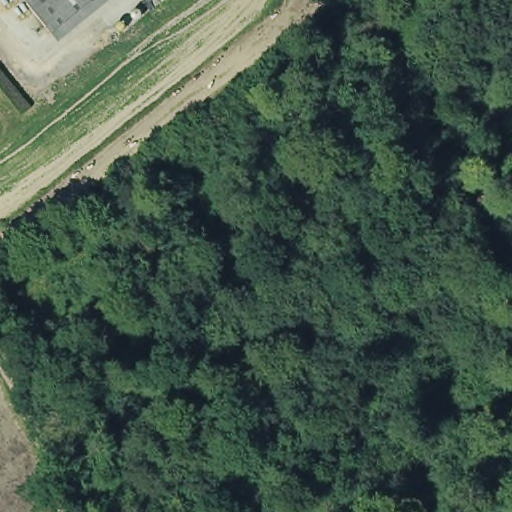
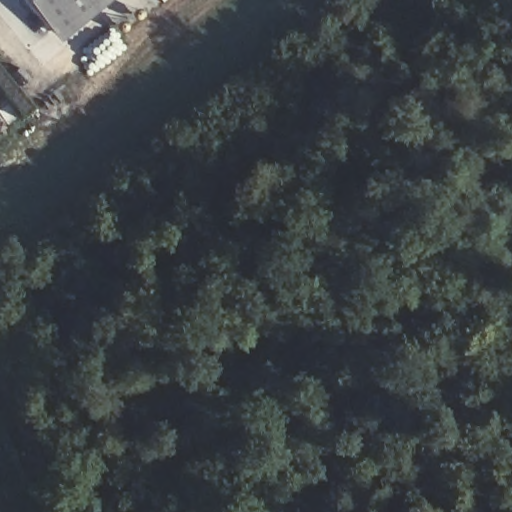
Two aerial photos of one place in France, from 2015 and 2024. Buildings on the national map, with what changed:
unchanged [(21,0),(97,0),(52,38),(21,0)]

